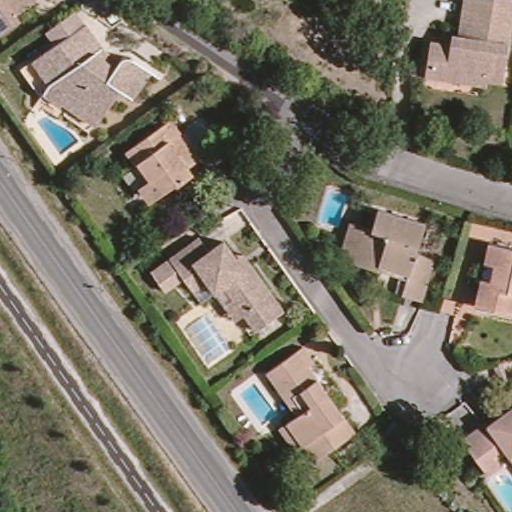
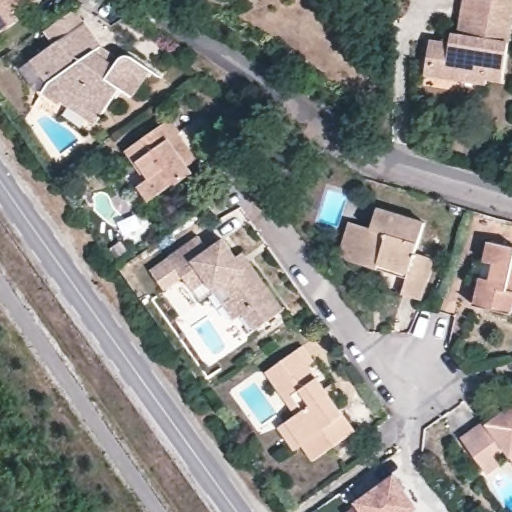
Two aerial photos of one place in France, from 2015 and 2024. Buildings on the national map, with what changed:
unchanged [(35,1),(17,14),(20,20),(0,34),(0,0),(35,0),(35,1)]
unchanged [(476,80),(475,85),(415,77),(417,68),(420,43),(432,45),(433,35),(448,37),(454,0),(503,0),(492,74),(491,83),(476,80)]
unchanged [(85,25),(102,49),(96,54),(117,68),(123,61),(128,59),(133,59),(152,72),(133,99),(121,91),(100,119),(68,97),(61,105),(43,93),(50,84),(35,61),(85,25)]
unchanged [(126,143),(170,112),(180,126),(176,129),(194,155),(187,160),(192,168),(176,178),(173,176),(158,186),(152,189),(147,187),(143,182),(142,178),(145,173),(135,158),(126,143)]
unchanged [(345,254),(336,242),(346,214),(357,218),(367,222),(372,202),(420,217),(411,247),(429,253),(416,295),(397,289),(402,273),(373,263),(345,254)]
unchanged [(210,289),(195,299),(187,288),(177,275),(158,289),(147,272),(165,259),(164,255),(194,234),(204,248),(219,237),(232,255),(237,251),(277,308),(250,328),(237,311),(230,317),(210,289)]
unchanged [(510,316),(472,308),(478,279),(482,263),(487,243),(512,249),(512,310),(510,316)]
unchanged [(277,424),(285,419),(295,413),(285,399),(265,369),(301,344),(313,361),(308,364),(325,387),(331,383),(343,399),(336,404),(353,430),(312,457),(302,443),(294,449),(277,424)]
unchanged [(512,457),(502,446),(493,453),(500,462),(487,472),(480,462),(462,437),(486,420),(488,423),(512,406),(512,458),(512,457)]
new [(419,512),(362,512),(360,509),(398,483),(419,512)]

